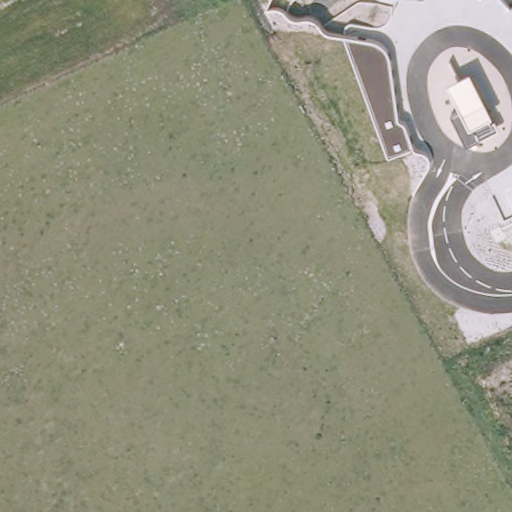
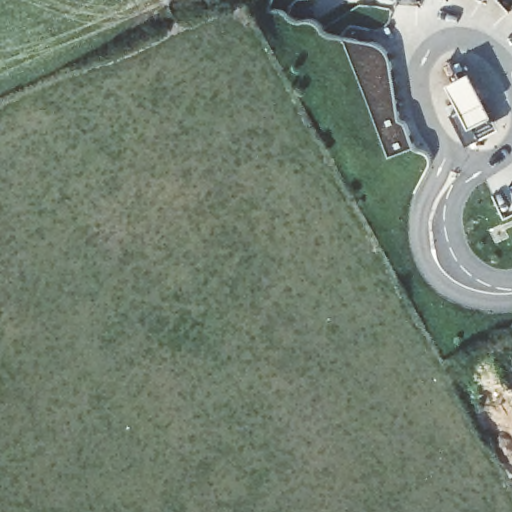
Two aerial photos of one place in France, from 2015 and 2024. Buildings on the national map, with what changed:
unchanged [(402,123),(405,126),(413,149),(388,157),(343,40),(373,44),(380,47),(385,52),(390,58),(391,69),(397,118),(397,121),(402,123)]
unchanged [(466,146),(450,114),(461,109),(450,83),(471,72),(492,116),(500,129),(466,146)]

